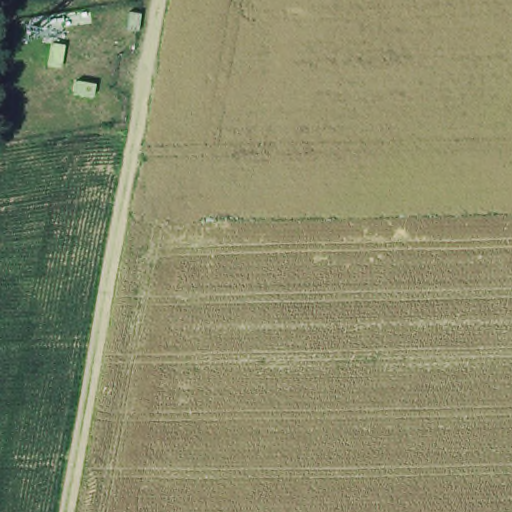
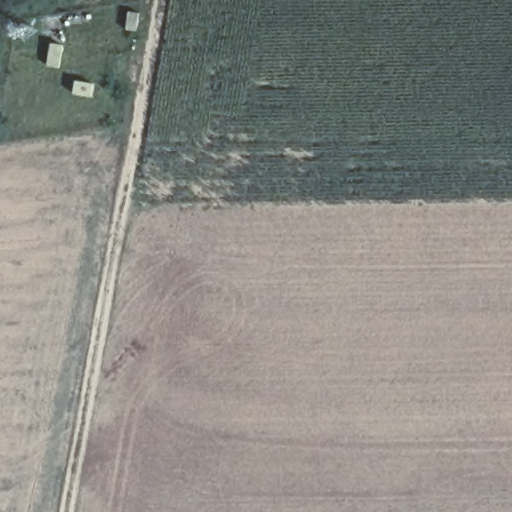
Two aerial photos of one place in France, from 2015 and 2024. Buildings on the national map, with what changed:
unchanged [(137,31),(126,30),(129,12),(140,14),(137,31)]
unchanged [(63,45),(60,67),(48,66),(52,44),(63,45)]
unchanged [(94,85),(92,96),(74,94),(76,81),(94,85)]

